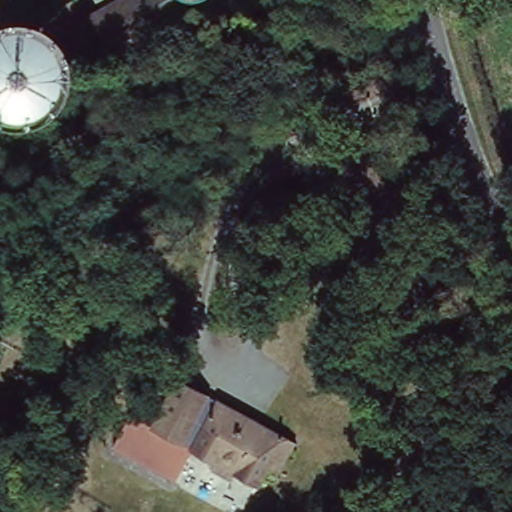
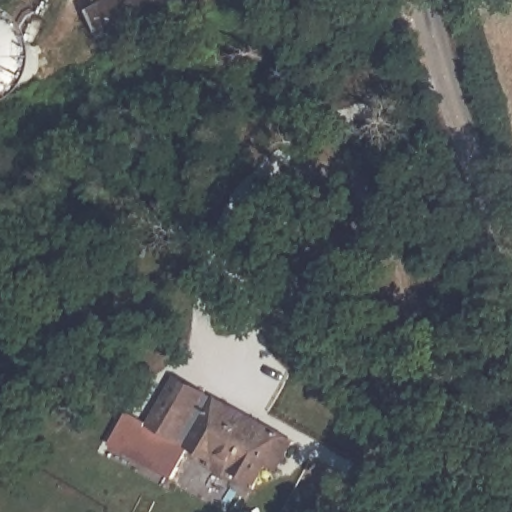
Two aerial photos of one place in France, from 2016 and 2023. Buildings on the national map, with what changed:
unchanged [(173,375),(295,444),(278,473),(270,470),(260,486),(241,474),(235,483),(214,470),(218,464),(191,449),(174,482),(113,449),(130,416),(148,425),(173,375)]

